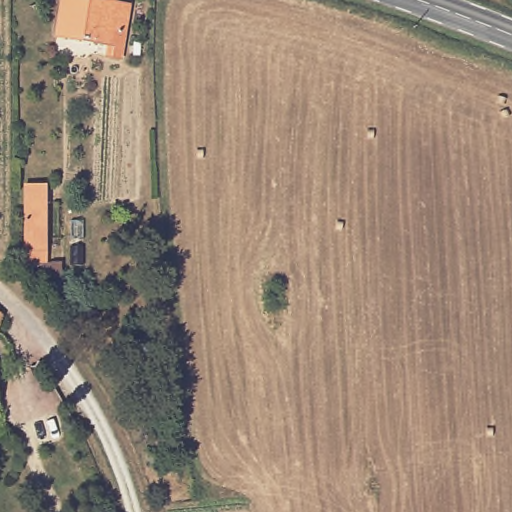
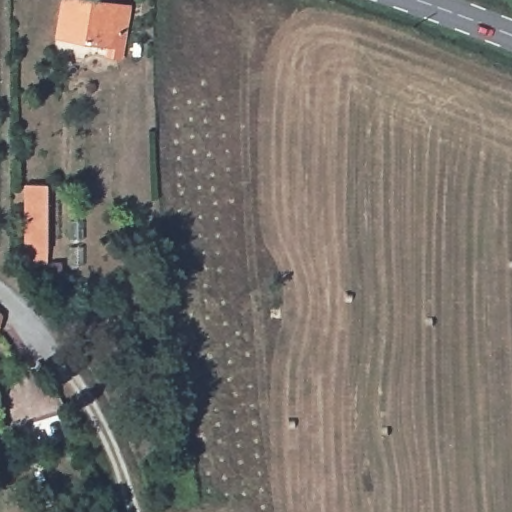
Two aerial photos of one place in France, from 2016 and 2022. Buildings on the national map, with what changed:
unchanged [(129,6),(121,57),(107,55),(108,45),(59,35),(65,0),(90,0),(129,6)]
unchanged [(22,246),(22,180),(43,180),(43,246),(43,255),(22,256),(22,246)]
unchanged [(39,277),(40,262),(48,262),(49,257),(57,257),(56,277),(39,277)]
unchanged [(0,326),(0,314),(3,317),(0,326)]

